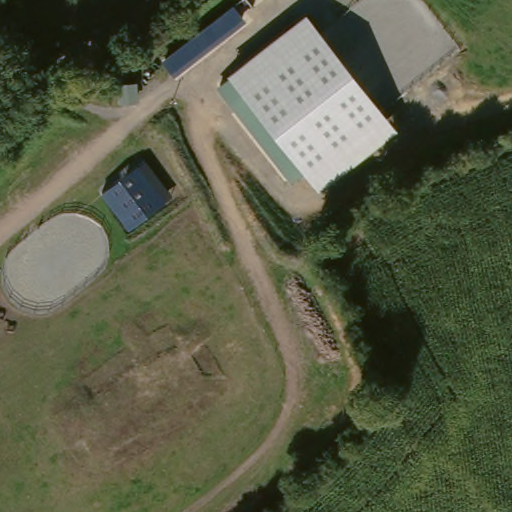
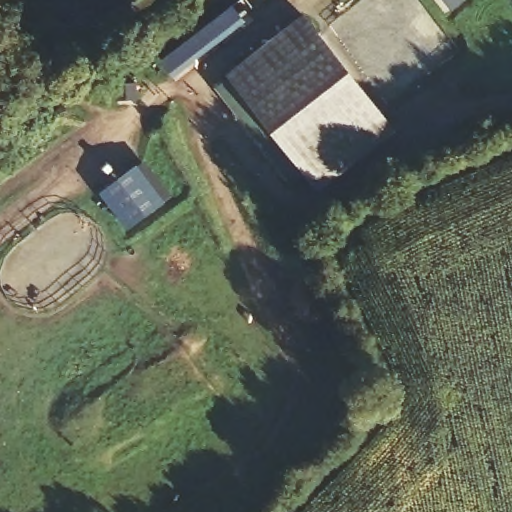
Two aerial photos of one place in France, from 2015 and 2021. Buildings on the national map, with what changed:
unchanged [(174,76),(161,60),(232,5),(246,20),(174,76)]
unchanged [(319,193),(301,173),(291,179),(219,88),(229,79),(226,75),(304,14),(396,129),(319,193)]
unchanged [(127,229),(101,194),(144,161),(171,195),(127,229)]

